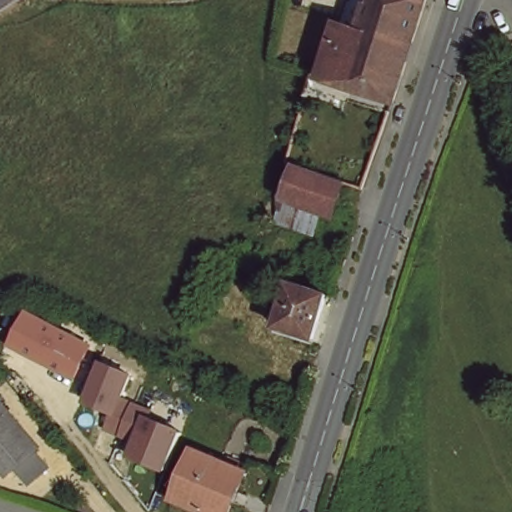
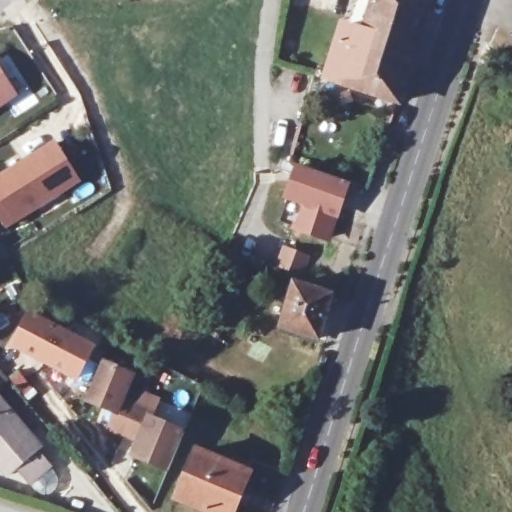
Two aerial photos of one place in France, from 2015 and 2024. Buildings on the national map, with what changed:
unchanged [(402,105),(333,82),(346,30),(363,35),(372,0),(436,0),(402,105)]
new [(0,107),(0,69),(16,97),(0,107)]
new [(80,180),(3,230),(0,226),(0,170),(51,138),(80,180)]
unchanged [(334,177),(346,182),(336,212),(285,194),(297,163),(334,177)]
new [(281,244),(311,254),(302,276),(272,266),(281,244)]
unchanged [(329,289),(314,334),(281,323),(296,278),(329,289)]
unchanged [(95,343),(91,349),(75,380),(11,346),(31,312),(95,343)]
unchanged [(135,374),(124,397),(153,409),(148,417),(183,432),(168,468),(131,456),(136,439),(108,428),(113,412),(84,401),(103,362),(135,374)]
unchanged [(28,441),(40,456),(21,472),(8,457),(0,464),(0,463),(0,399),(32,437),(28,441)]
unchanged [(244,465),(223,510),(177,490),(197,445),(244,465)]

